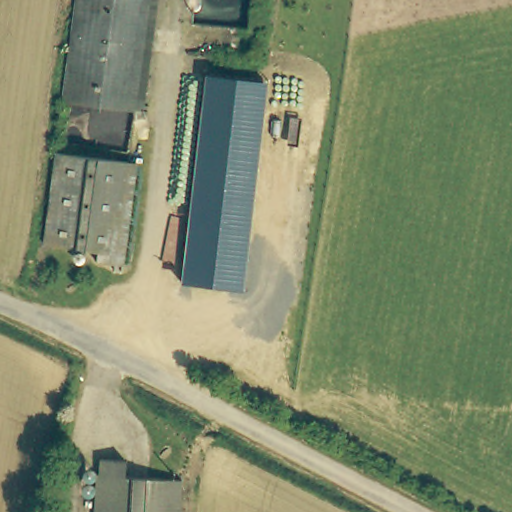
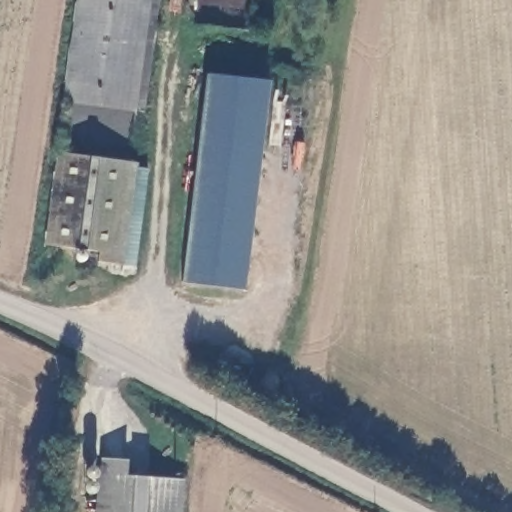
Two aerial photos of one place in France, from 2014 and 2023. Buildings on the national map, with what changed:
unchanged [(68,100),(81,0),(155,0),(139,110),(68,100)]
unchanged [(245,292),(181,284),(205,74),(269,82),(245,292)]
unchanged [(125,264),(119,263),(101,262),(102,252),(49,244),(61,153),(132,162),(140,163),(125,264)]
unchanged [(178,512),(95,512),(98,459),(124,462),(123,477),(180,481),(178,512)]

